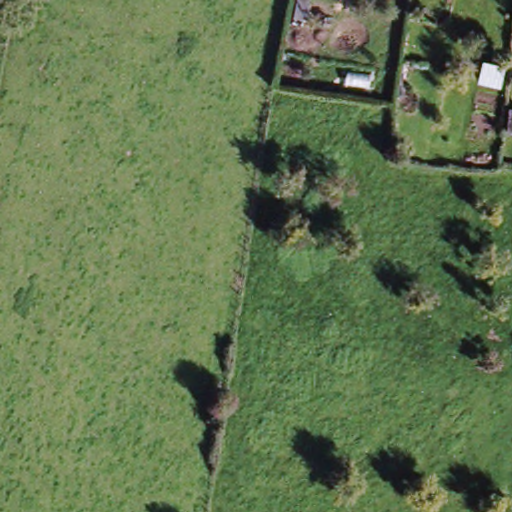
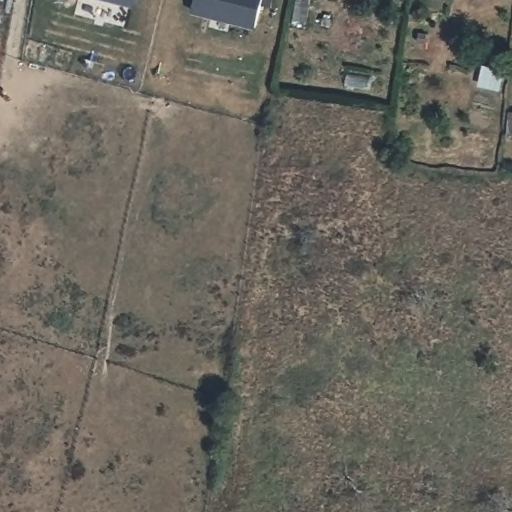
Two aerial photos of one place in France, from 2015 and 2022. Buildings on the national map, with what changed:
new [(130,5),(110,0),(131,0),(130,5)]
new [(255,26),(192,10),(195,0),(262,0),(255,26)]

